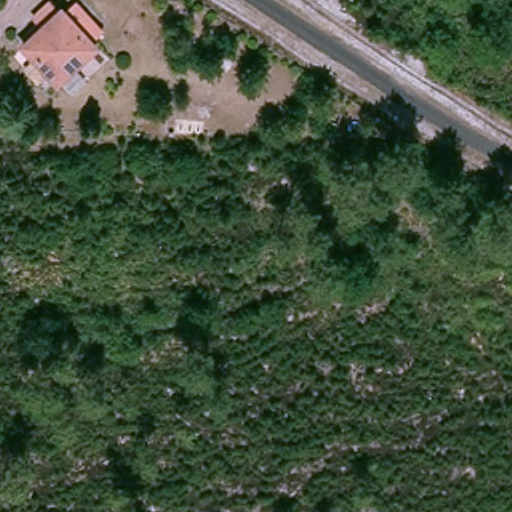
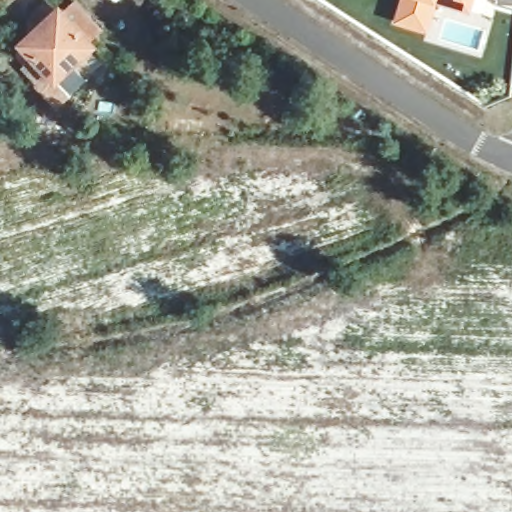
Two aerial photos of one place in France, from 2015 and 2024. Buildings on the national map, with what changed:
new [(401,0),(474,0),(470,13),(436,2),(427,33),(395,21),(401,0)]
unchanged [(55,77),(24,45),(60,11),(90,45),(55,77)]

